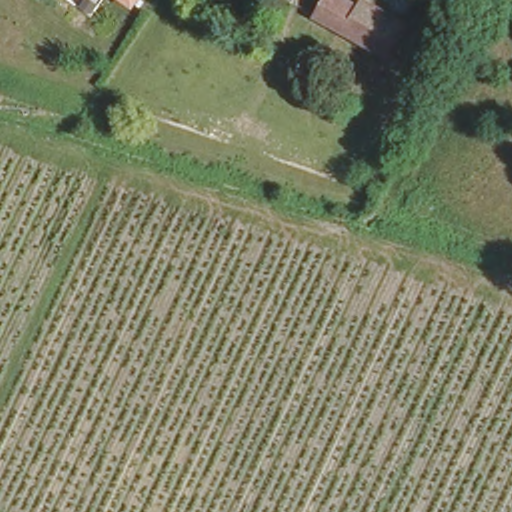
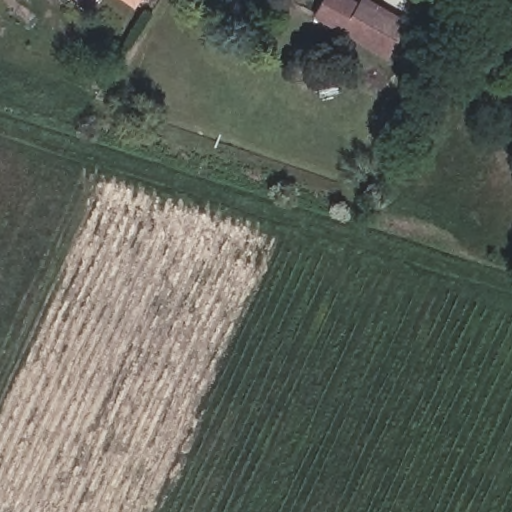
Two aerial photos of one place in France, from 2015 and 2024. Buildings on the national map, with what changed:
unchanged [(357,0),(360,1),(361,0),(376,0),(391,8),(373,40),(317,11),(323,0),(357,0)]

